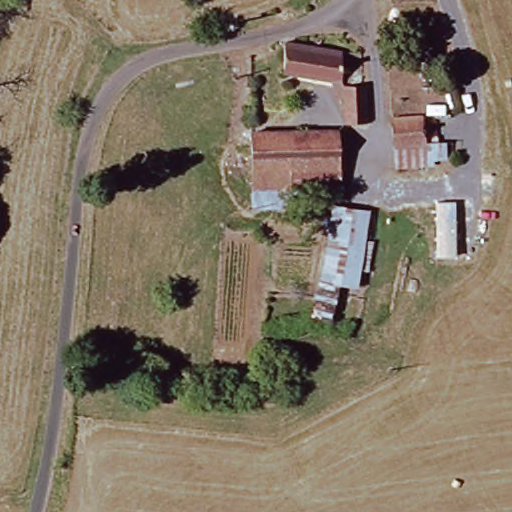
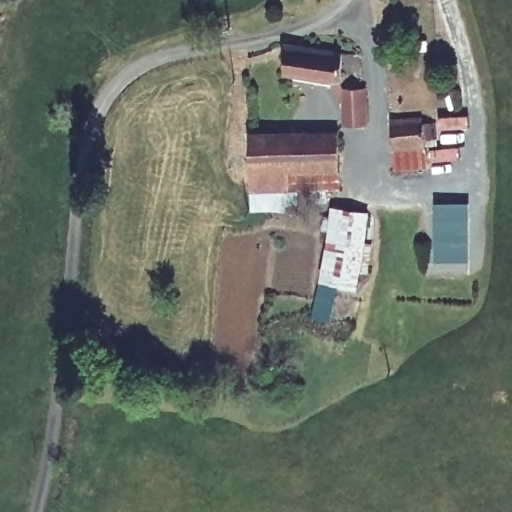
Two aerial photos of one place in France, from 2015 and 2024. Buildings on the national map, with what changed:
unchanged [(348,60),(357,59),(357,91),(362,91),(364,127),(341,126),(341,86),(282,77),(279,48),(348,60)]
unchanged [(386,121),(421,119),(423,144),(433,144),(437,166),(391,171),(386,121)]
unchanged [(335,192),(249,192),(249,135),(335,135),(335,192)]
new [(434,260),(435,202),(470,203),(469,260),(434,260)]
unchanged [(317,281),(331,207),(367,211),(362,242),(369,243),(365,273),(357,271),(352,292),(334,289),(328,321),(309,319),(317,281)]

